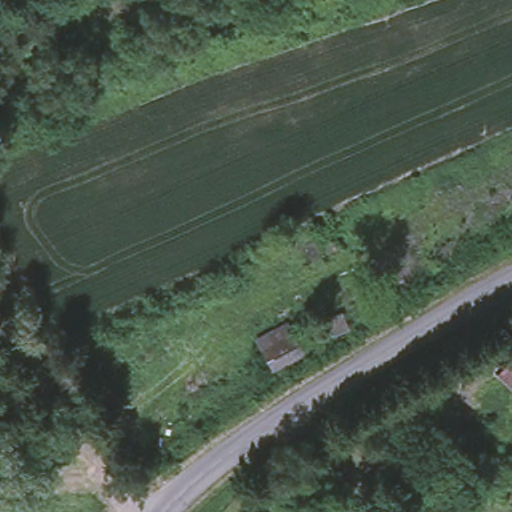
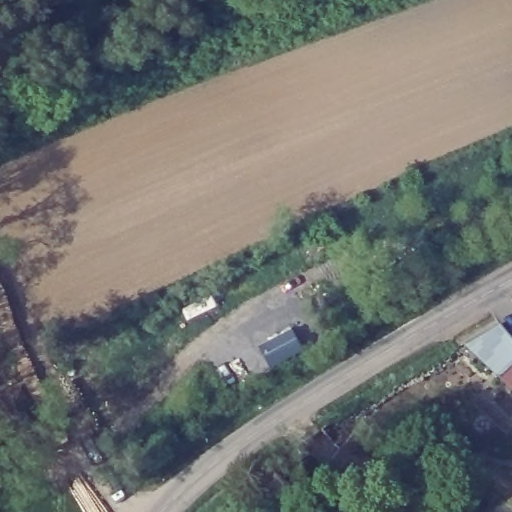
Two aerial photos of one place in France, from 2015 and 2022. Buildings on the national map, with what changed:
new [(512,337),(512,359),(493,375),(463,344),(501,324),(512,337)]
unchanged [(512,359),(512,393),(493,375),(512,359)]

